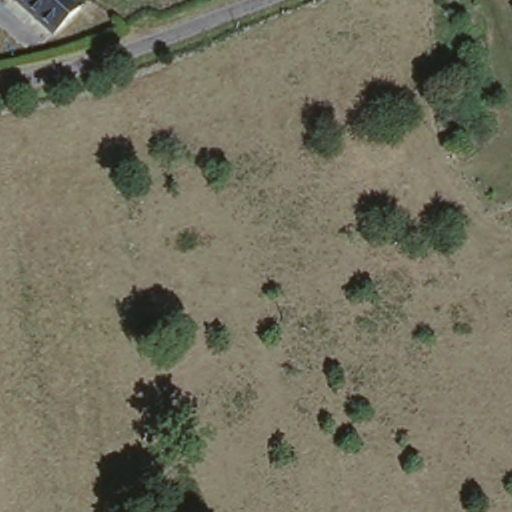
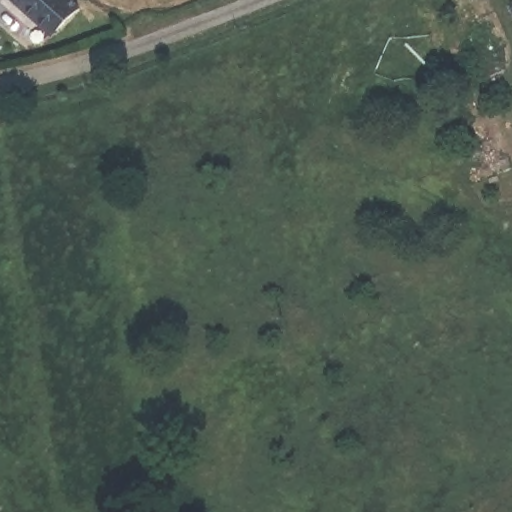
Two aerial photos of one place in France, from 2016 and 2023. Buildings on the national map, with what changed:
unchanged [(54,38),(9,2),(5,6),(0,2),(0,0),(62,0),(76,11),(54,38)]

